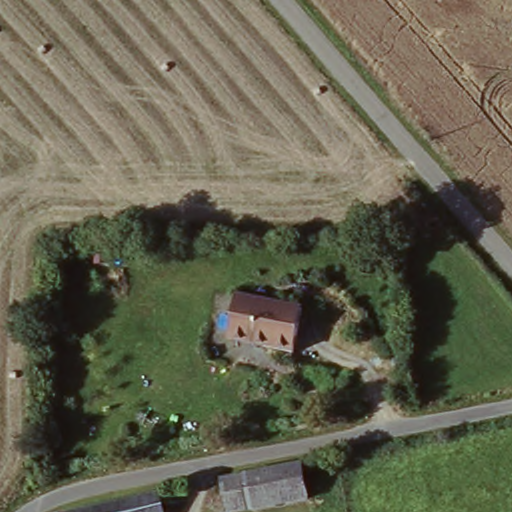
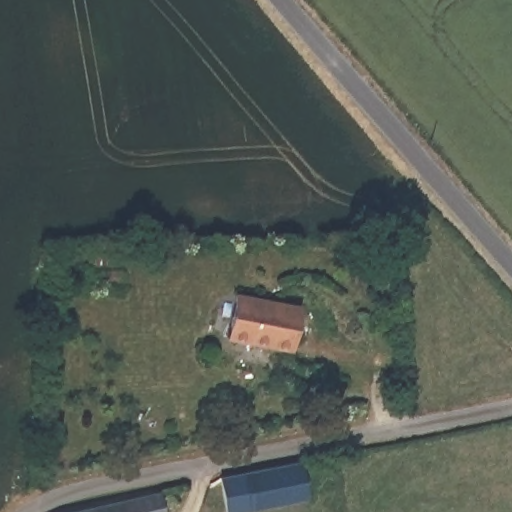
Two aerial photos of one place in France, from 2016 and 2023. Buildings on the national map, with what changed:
unchanged [(303,308),(293,354),(230,340),(240,294),(303,308)]
unchanged [(275,512),(226,512),(220,483),(276,472),(297,468),(303,505),(275,512)]
unchanged [(155,496),(159,512),(91,512),(131,501),(155,496)]

